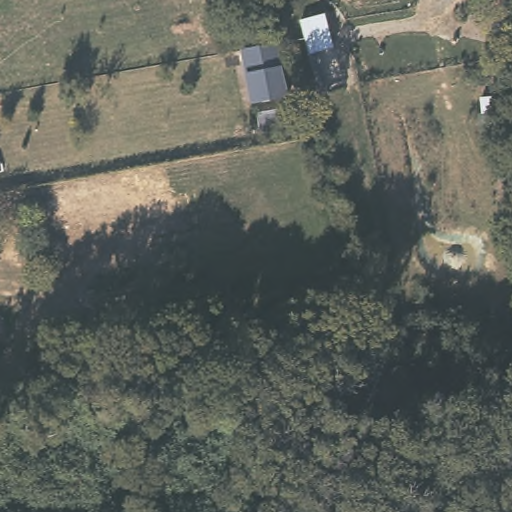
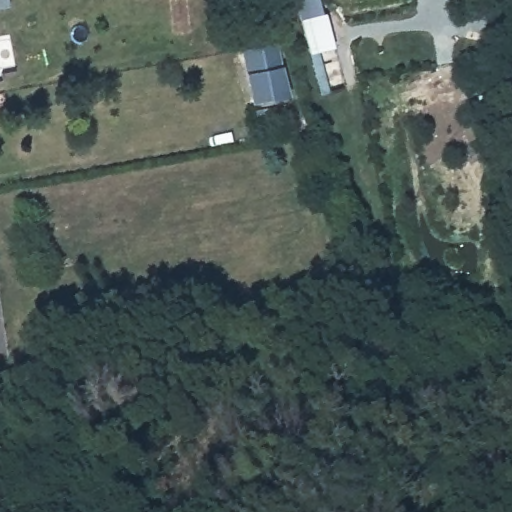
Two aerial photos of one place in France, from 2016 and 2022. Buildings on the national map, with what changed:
unchanged [(333,47),(308,54),(299,20),(325,13),(333,47)]
unchanged [(280,63),(287,91),(253,97),(244,46),(276,40),(280,63)]

